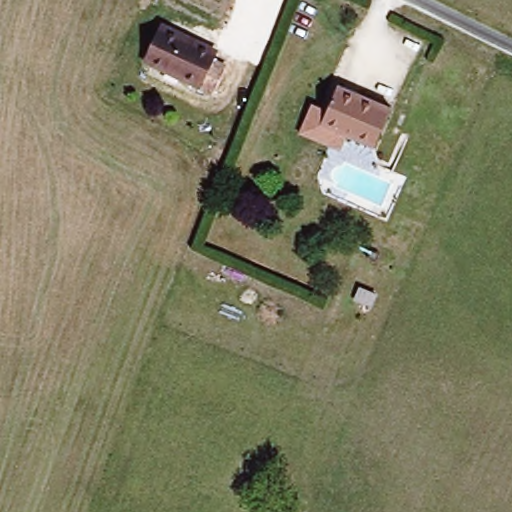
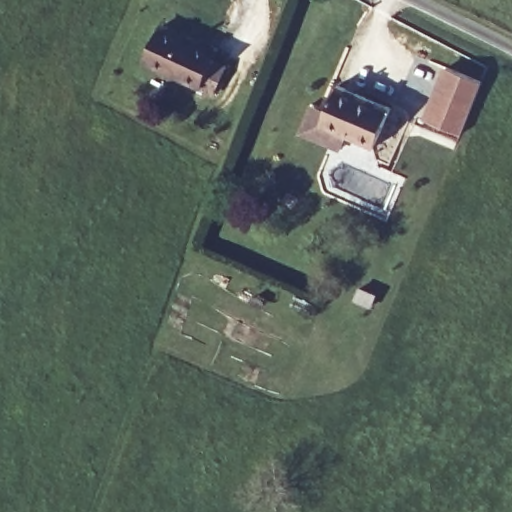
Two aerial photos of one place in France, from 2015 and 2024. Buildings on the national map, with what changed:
unchanged [(210,56),(223,61),(212,88),(142,61),(156,24),(213,46),(210,56)]
new [(483,82),(461,134),(422,119),(443,66),(483,82)]
unchanged [(387,106),(371,148),(345,139),(339,152),(301,136),(311,107),(322,110),(332,84),(387,106)]

